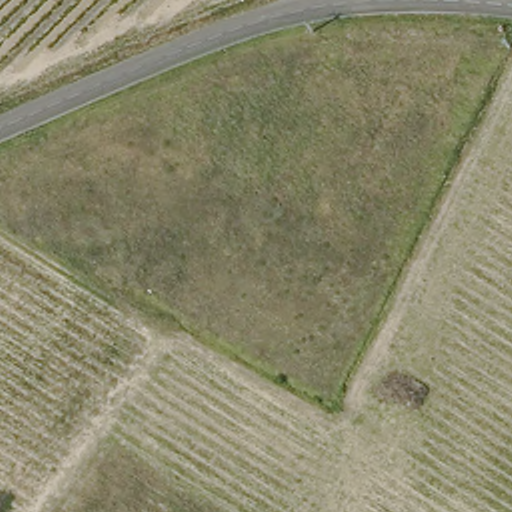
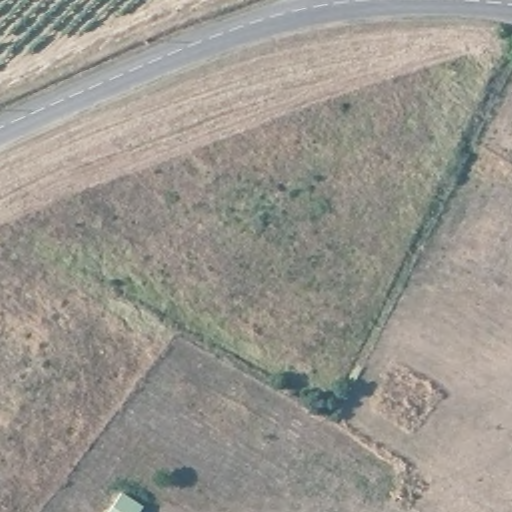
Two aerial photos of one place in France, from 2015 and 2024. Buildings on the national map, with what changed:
new [(143,502),(138,512),(109,512),(121,491),(143,502)]

